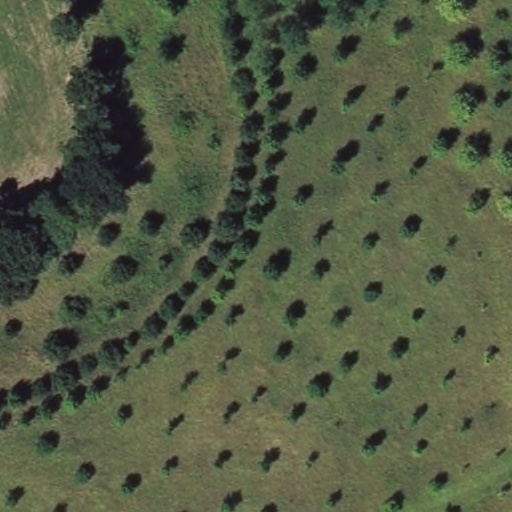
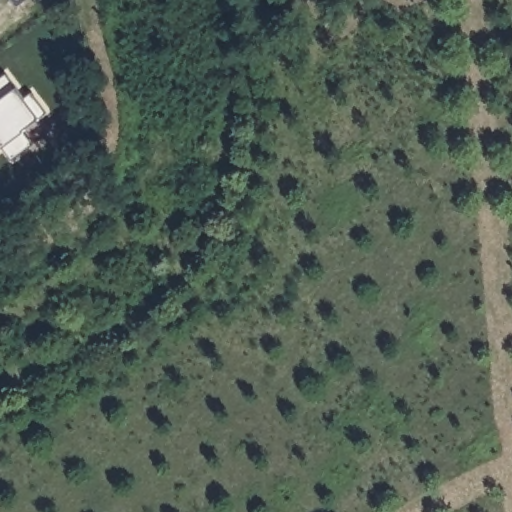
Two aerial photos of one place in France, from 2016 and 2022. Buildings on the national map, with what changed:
new [(25,100),(31,94),(46,113),(24,131),(33,144),(11,160),(0,146),(0,80),(6,75),(25,100)]

